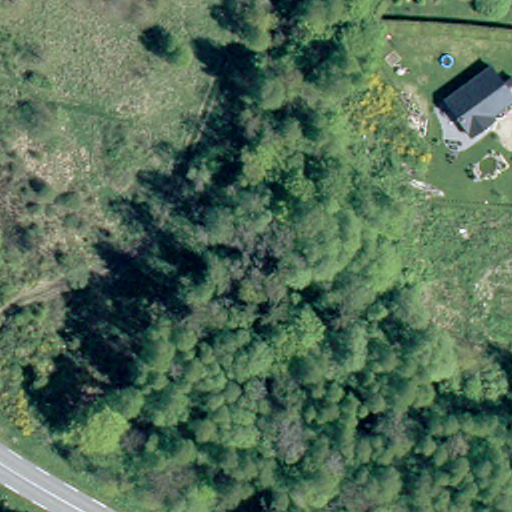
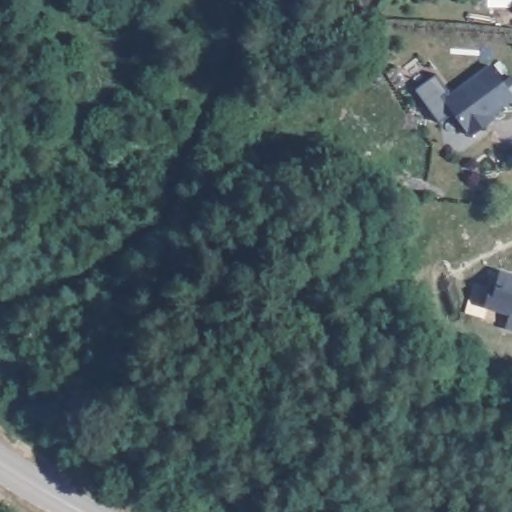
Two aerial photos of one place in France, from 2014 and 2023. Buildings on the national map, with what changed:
unchanged [(512,93),(512,101),(495,114),(497,119),(470,133),(442,98),(491,63),(512,93)]
new [(493,289),(498,291),(503,275),(512,278),(512,328),(507,327),(510,313),(488,307),(493,289)]

